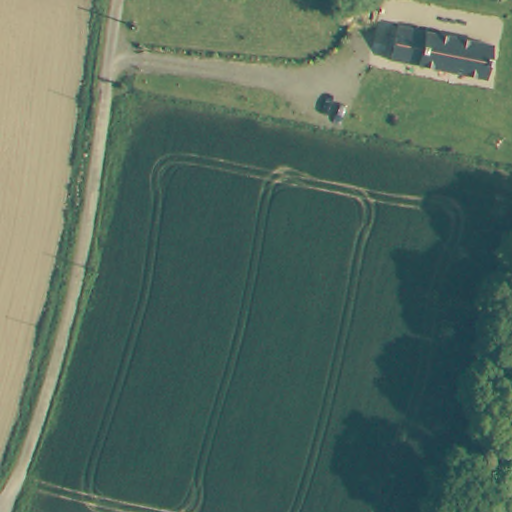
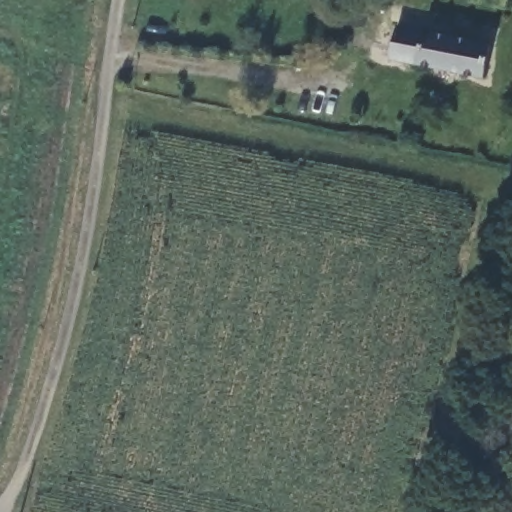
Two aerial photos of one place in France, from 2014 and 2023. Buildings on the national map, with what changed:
unchanged [(480,76),(383,58),(388,25),(486,42),(480,76)]

